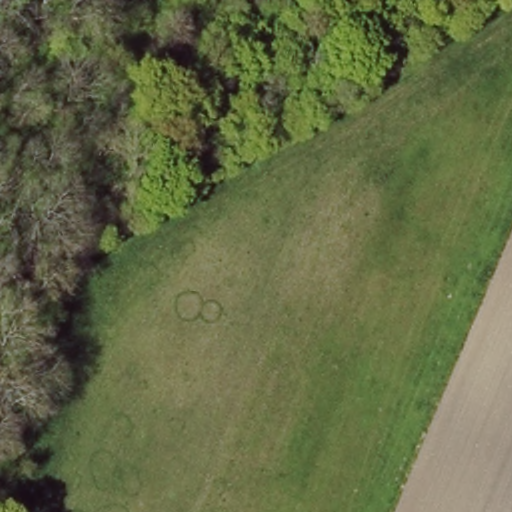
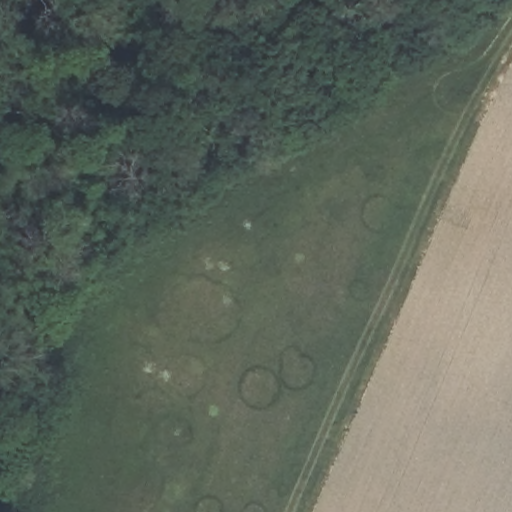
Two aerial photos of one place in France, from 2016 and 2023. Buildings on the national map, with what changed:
unchanged [(426,19),(450,5),(459,17),(434,33),(426,19)]

